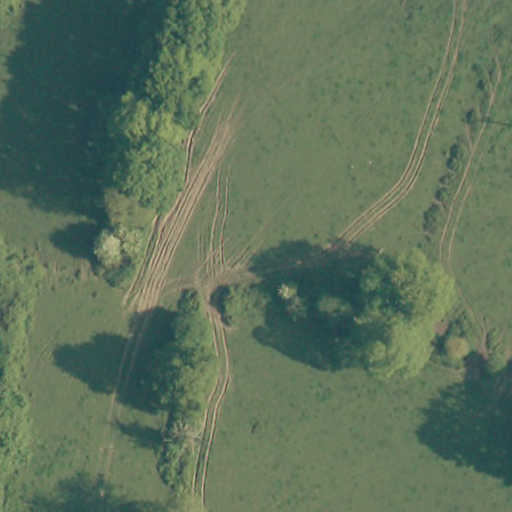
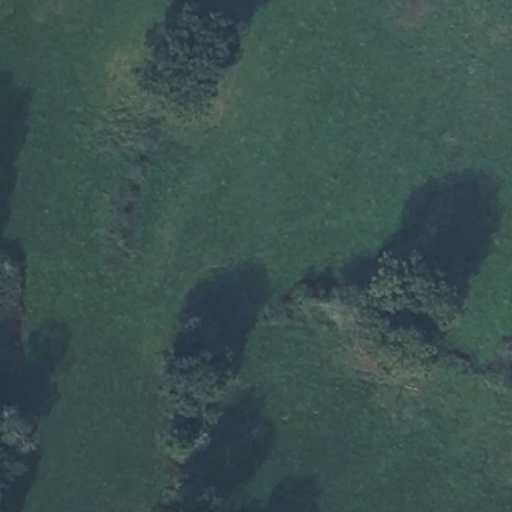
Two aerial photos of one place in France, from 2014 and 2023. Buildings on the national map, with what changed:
[]

